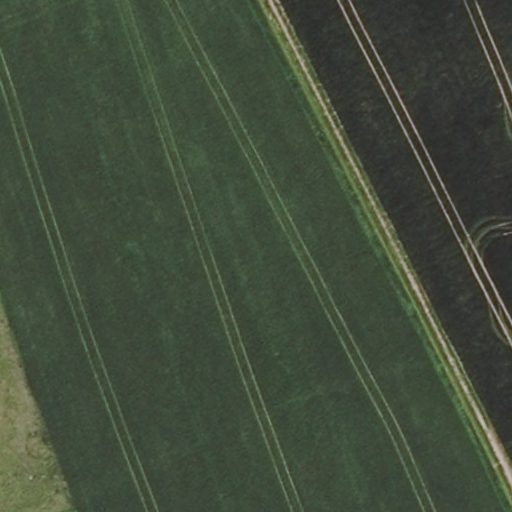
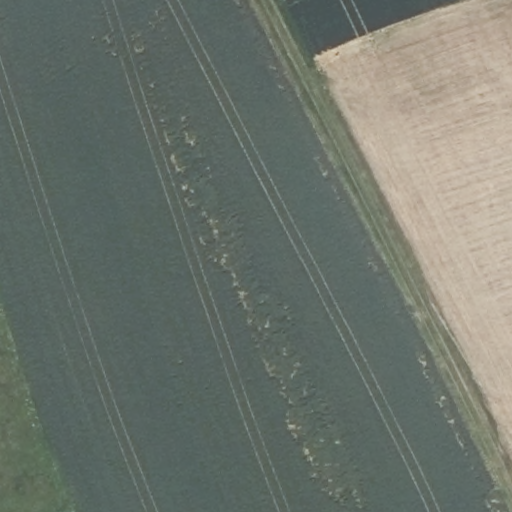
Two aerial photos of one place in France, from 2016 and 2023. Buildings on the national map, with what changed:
[]

